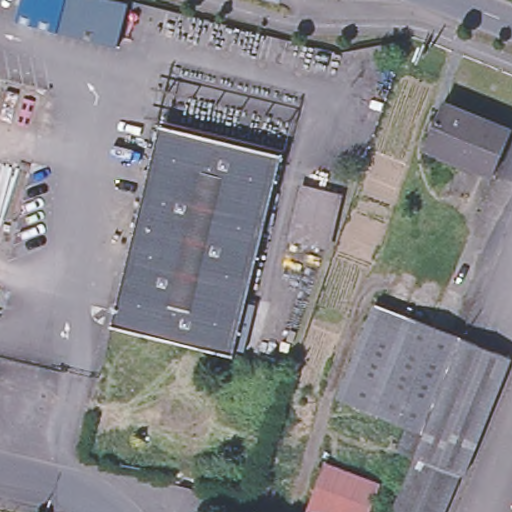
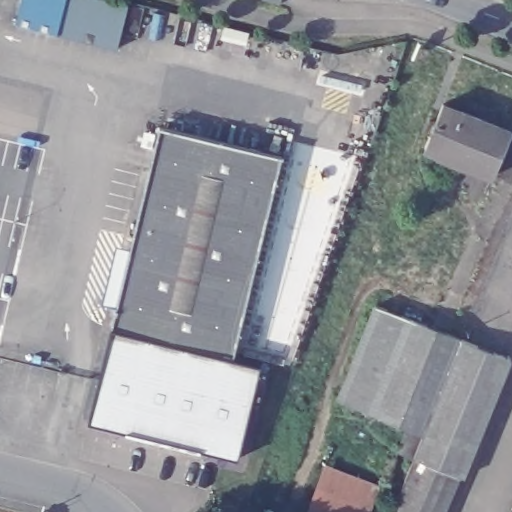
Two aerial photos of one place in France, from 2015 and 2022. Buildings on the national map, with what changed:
unchanged [(109,0),(128,5),(116,49),(56,33),(65,0),(109,0)]
unchanged [(440,106),(507,134),(489,178),(422,149),(440,106)]
unchanged [(245,349),(237,347),(235,357),(112,327),(161,124),(284,154),(248,303),(256,304),(245,349)]
unchanged [(307,186),(343,194),(330,249),(294,240),(307,186)]
unchanged [(412,464),(413,461),(414,459),(400,453),(410,428),(338,399),(375,309),(460,342),(462,343),(510,362),(462,479),(457,478),(444,512),(393,512),(412,464)]
new [(235,357),(259,364),(238,456),(90,421),(112,327),(235,357)]
demolished [(159,387),(217,402),(208,440),(150,426),(159,387)]
unchanged [(326,467),(378,488),(369,512),(311,512),(308,511),(326,467)]

